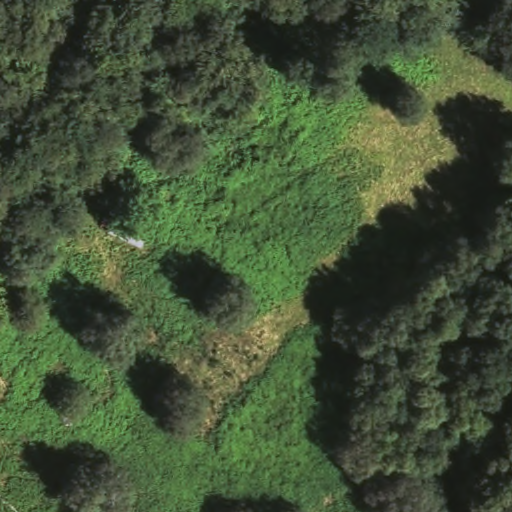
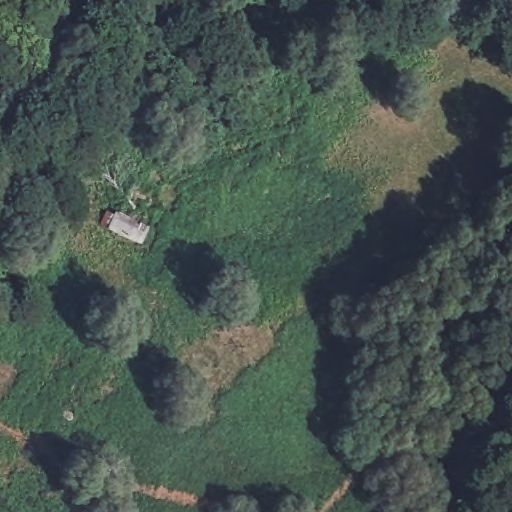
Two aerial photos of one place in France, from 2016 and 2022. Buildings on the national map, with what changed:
unchanged [(107,208),(127,217),(154,228),(145,250),(97,229),(107,208)]

